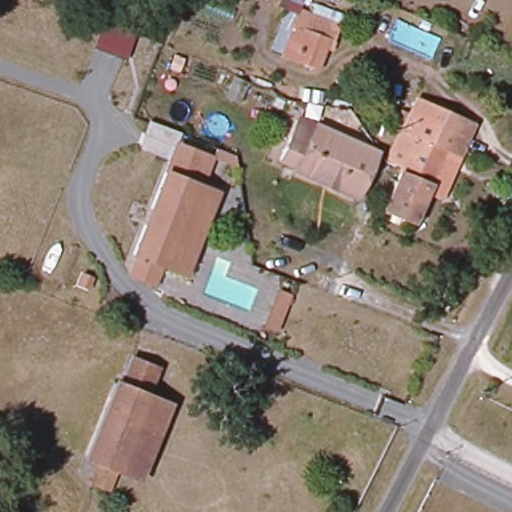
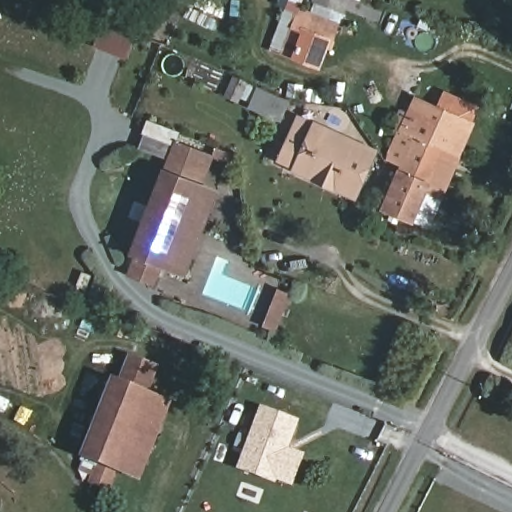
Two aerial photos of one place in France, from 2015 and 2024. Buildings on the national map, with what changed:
unchanged [(311,35),(315,23),(336,32),(325,60),(288,43),(295,28),(311,35)]
unchanged [(405,169),(391,163),(403,133),(411,135),(422,106),(476,127),(463,159),(447,153),(419,222),(388,209),(405,169)]
unchanged [(372,154),(355,195),(282,164),(298,122),(372,154)]
unchanged [(135,256),(179,141),(211,155),(199,185),(167,269),(135,256)]
unchanged [(221,194),(188,278),(167,269),(199,185),(221,194)]
unchanged [(124,384),(134,359),(162,369),(152,394),(171,403),(141,482),(120,474),(112,493),(101,489),(99,488),(92,486),(99,468),(86,461),(117,382),(124,384)]
new [(264,408),(297,421),(287,448),(302,454),(292,481),(277,474),(276,478),(242,466),(264,408)]

